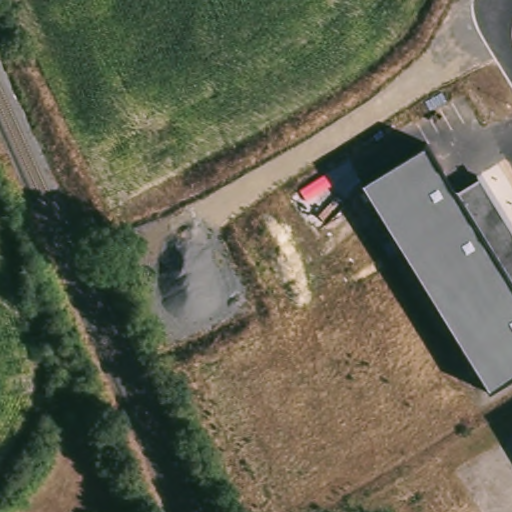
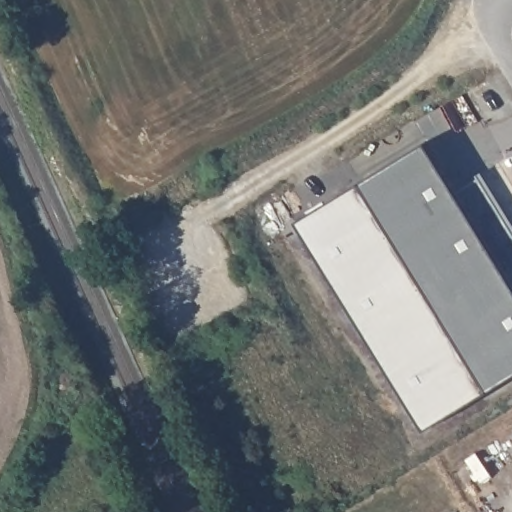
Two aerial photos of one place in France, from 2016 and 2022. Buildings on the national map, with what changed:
unchanged [(362,185),(423,147),(453,197),(479,180),(512,234),(512,377),(489,392),(362,185)]
new [(426,429),(297,222),(362,185),(489,392),(426,429)]

